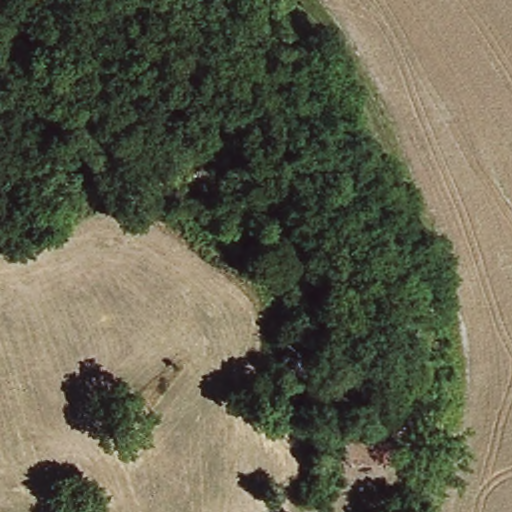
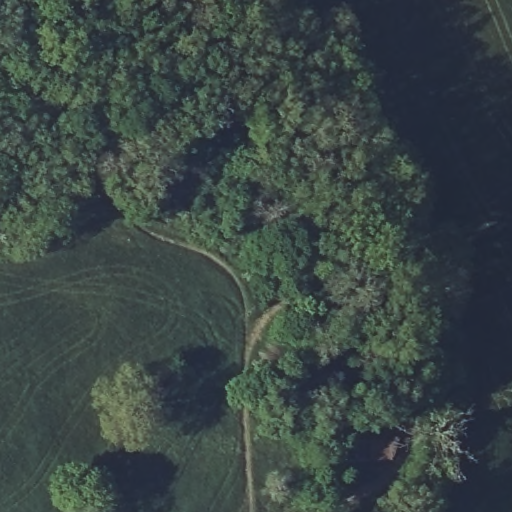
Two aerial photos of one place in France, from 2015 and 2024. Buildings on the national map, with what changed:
unchanged [(77,472),(102,462),(112,486),(87,496),(77,472)]

